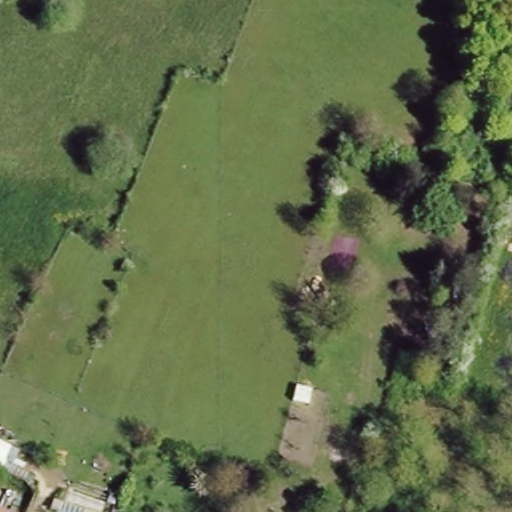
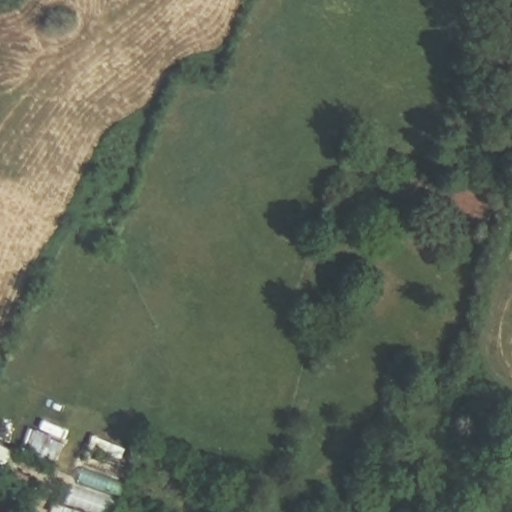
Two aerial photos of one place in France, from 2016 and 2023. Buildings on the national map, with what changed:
unchanged [(10,512),(0,512),(0,508),(10,512)]

